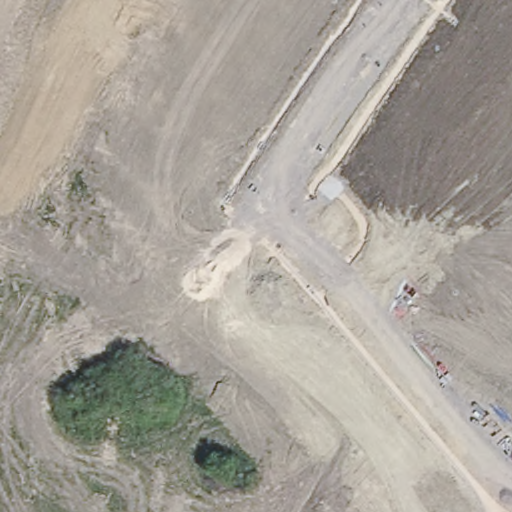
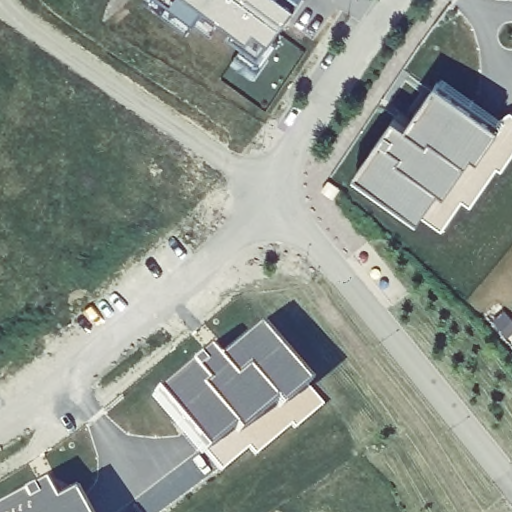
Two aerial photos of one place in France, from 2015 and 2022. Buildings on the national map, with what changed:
new [(303,0),(260,57),(230,36),(233,30),(205,11),(195,24),(162,0),(303,0)]
new [(396,115),(408,124),(437,81),(439,82),(441,78),(500,119),(510,112),(512,113),(512,156),(501,171),(497,168),(470,207),(462,201),(442,231),(421,216),(418,221),(355,177),(357,173),(356,172),(396,115)]
new [(208,348),(217,358),(263,321),(315,382),(307,388),(323,404),(295,428),(291,424),(255,455),(250,449),(220,471),(205,452),(200,457),(151,395),(208,348)]
new [(52,501),(71,492),(82,512),(0,512),(0,502),(42,480),(52,501)]

